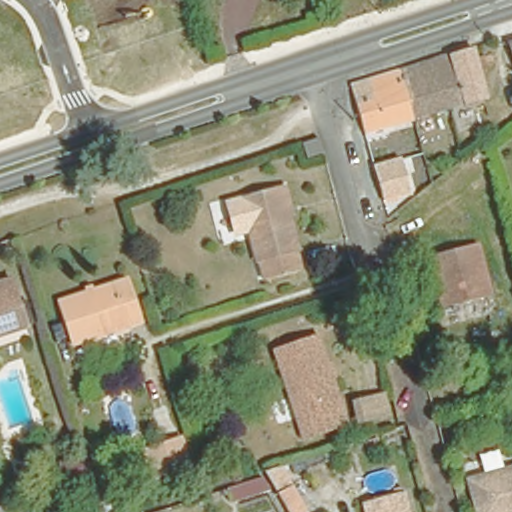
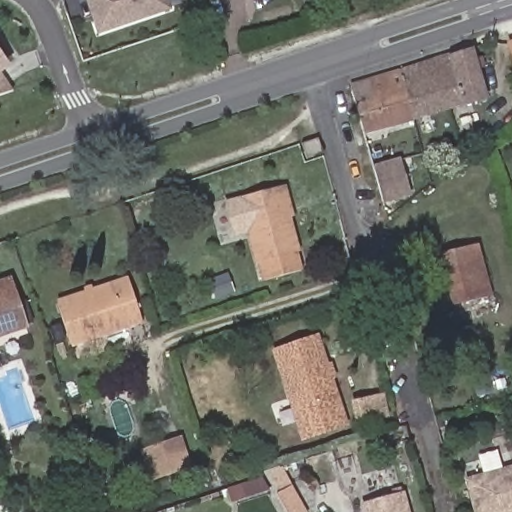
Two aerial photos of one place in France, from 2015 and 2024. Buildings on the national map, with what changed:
new [(95,35),(84,0),(167,0),(170,9),(95,35)]
unchanged [(472,45),(485,94),(417,114),(404,66),(472,45)]
unchanged [(512,45),(512,89),(497,51),(512,45)]
new [(10,68),(0,73),(12,91),(0,95),(0,53),(10,68)]
unchanged [(417,114),(368,129),(366,124),(366,123),(360,103),(356,86),(355,81),(370,76),(404,66),(417,114)]
unchanged [(318,153),(301,159),(295,141),(296,141),(313,136),(318,153)]
new [(404,161),(412,190),(382,199),(374,170),(404,161)]
unchanged [(259,254),(255,250),(238,191),(278,179),(283,177),(292,203),(286,205),(295,238),(294,241),(300,259),(265,270),(259,254)]
unchanged [(485,290),(436,304),(423,253),(472,240),(485,290)]
unchanged [(1,282),(0,279),(0,271),(12,267),(16,277),(28,317),(0,326),(0,282),(1,282)]
unchanged [(72,334),(60,294),(126,273),(138,313),(72,334)]
unchanged [(300,432),(296,417),(274,345),(313,333),(321,359),(330,356),(335,370),(325,373),(334,403),(338,418),(300,432)]
unchanged [(348,409),(375,400),(382,419),(355,428),(348,409)]
new [(144,468),(140,454),(178,441),(187,470),(175,474),(149,482),(144,468)]
unchanged [(473,469),(512,459),(512,504),(484,510),(473,469)]
unchanged [(361,498),(397,486),(405,512),(365,512),(361,498)]
unchanged [(277,498),(291,489),(304,512),(286,512),(277,498)]

